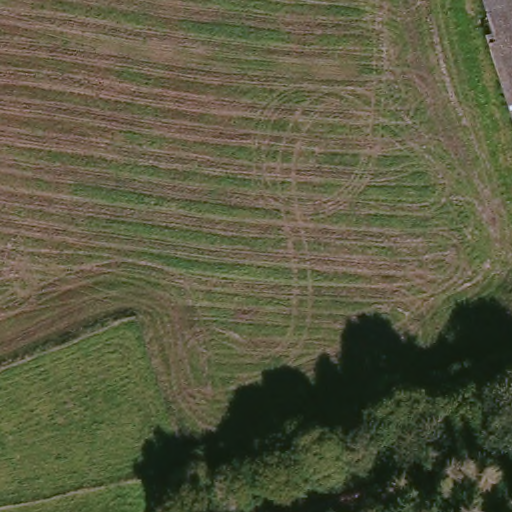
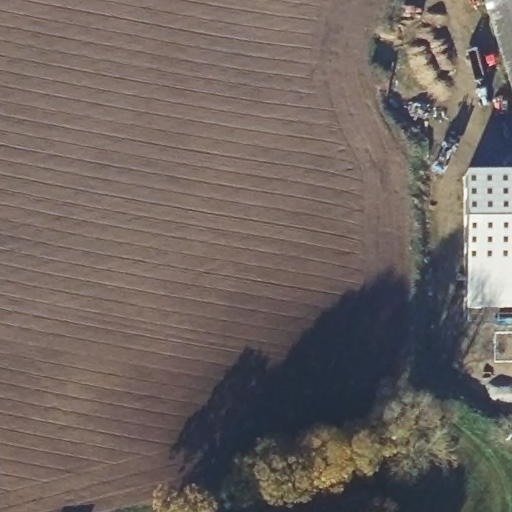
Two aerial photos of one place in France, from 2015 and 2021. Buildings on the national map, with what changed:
unchanged [(512,85),(483,0),(512,0),(512,85)]
new [(512,311),(467,311),(466,175),(512,175),(512,311)]
unchanged [(377,512),(217,512),(358,460),(377,512)]

